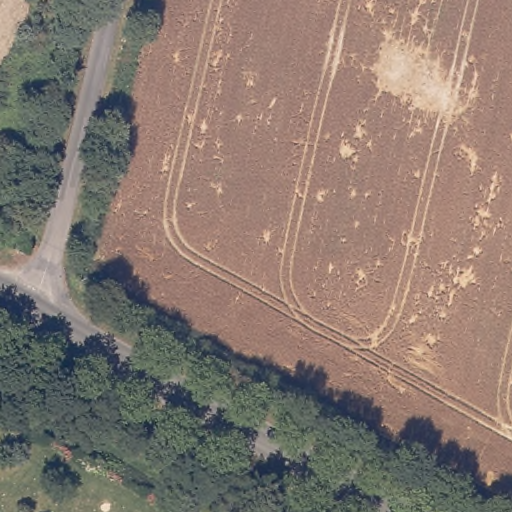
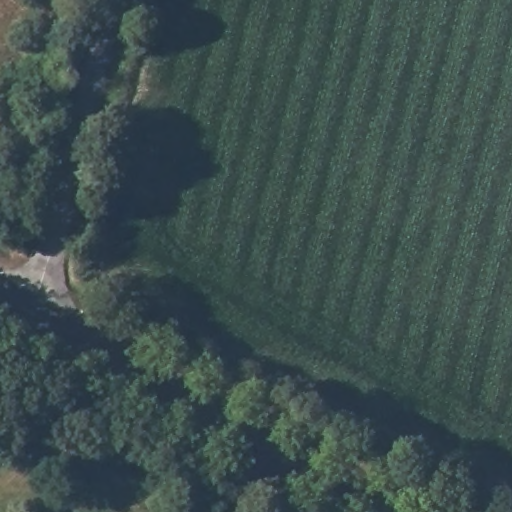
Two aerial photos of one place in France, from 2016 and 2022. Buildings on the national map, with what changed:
unchanged [(6,246),(12,235),(25,242),(22,255),(6,246)]

